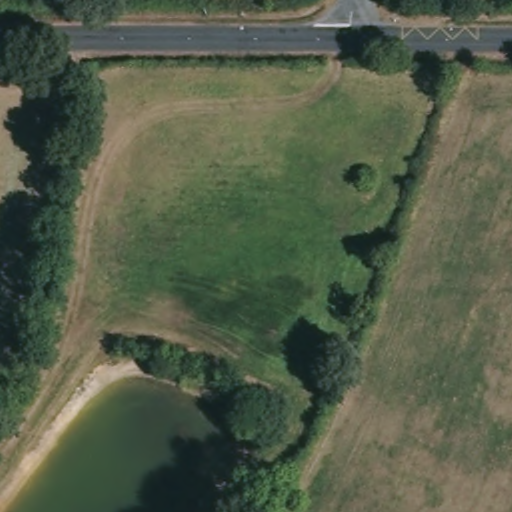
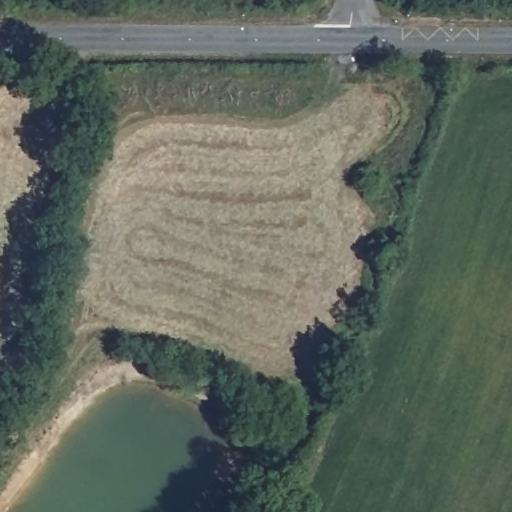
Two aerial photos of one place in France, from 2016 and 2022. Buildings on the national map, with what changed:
[]

